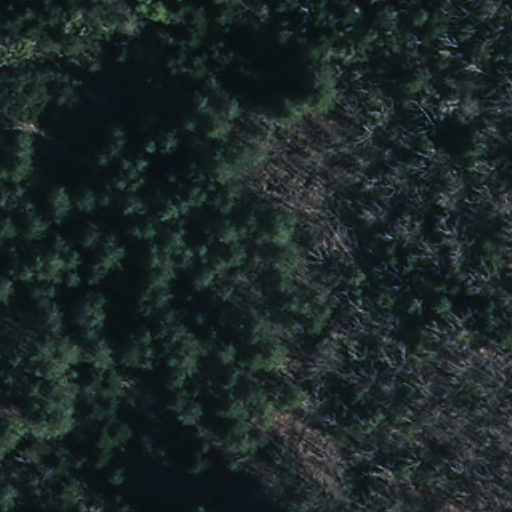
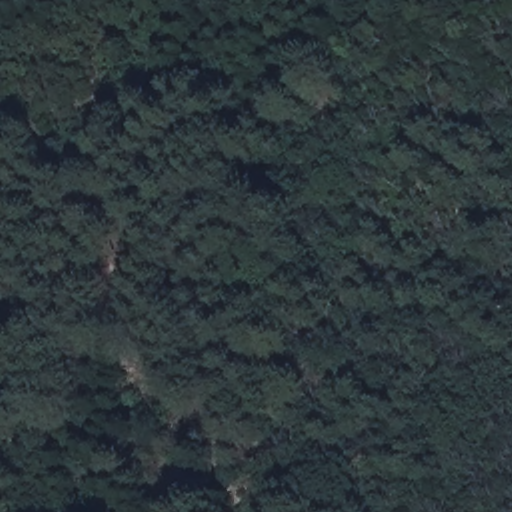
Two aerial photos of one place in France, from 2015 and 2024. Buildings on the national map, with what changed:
[]

